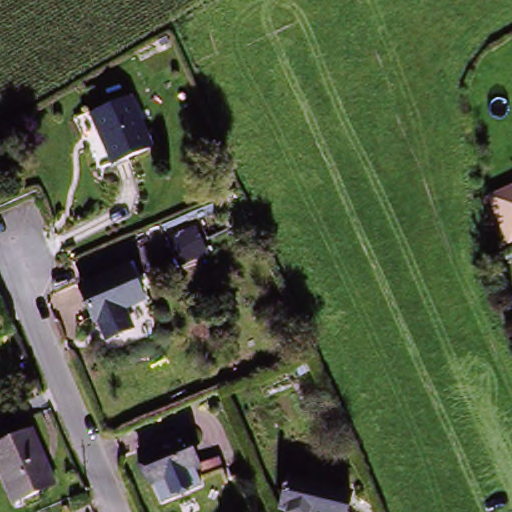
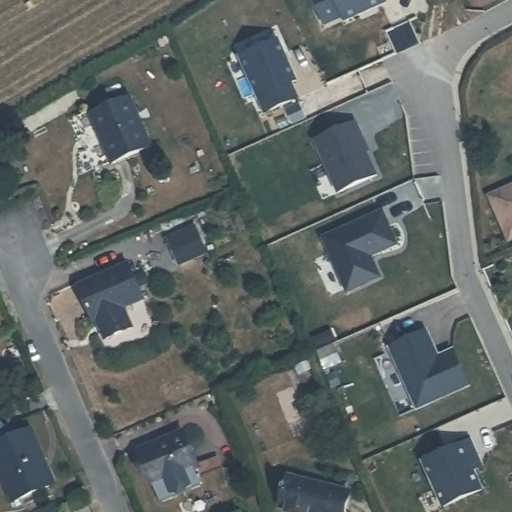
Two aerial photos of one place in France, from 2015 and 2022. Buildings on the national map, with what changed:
new [(381,1),(382,6),(343,24),(332,0),(382,0),(381,1)]
new [(276,42),(294,82),(289,84),(296,99),(263,114),(239,58),(276,42)]
unchanged [(127,102),(149,150),(111,167),(89,119),(127,102)]
new [(357,121),(372,151),(367,152),(380,177),(338,196),(312,141),(357,121)]
unchanged [(507,246),(491,199),(512,187),(512,244),(507,246)]
new [(382,211),(397,245),(370,257),(380,277),(347,292),(322,238),(382,211)]
new [(195,225),(208,256),(179,268),(165,237),(195,225)]
unchanged [(127,271),(141,300),(122,308),(132,331),(109,341),(99,320),(95,321),(81,292),(127,271)]
new [(436,347),(441,357),(456,351),(472,386),(420,409),(392,347),(429,331),(436,347)]
unchanged [(54,483),(12,500),(0,471),(0,442),(32,429),(54,483)]
unchanged [(177,440),(192,477),(149,495),(133,458),(177,440)]
new [(475,440),(482,456),(472,460),(486,490),(447,507),(426,462),(475,440)]
unchanged [(343,512),(304,512),(302,511),(302,512),(289,512),(282,508),(285,502),(279,500),(293,473),(348,500),(343,512)]

